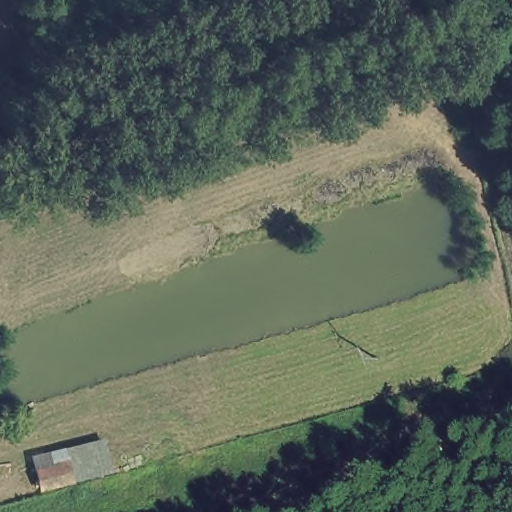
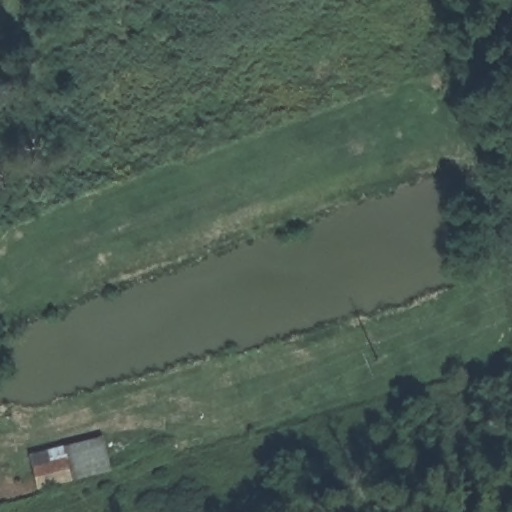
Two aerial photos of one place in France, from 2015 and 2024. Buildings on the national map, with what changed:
unchanged [(113,475),(31,495),(21,454),(101,437),(113,475)]

